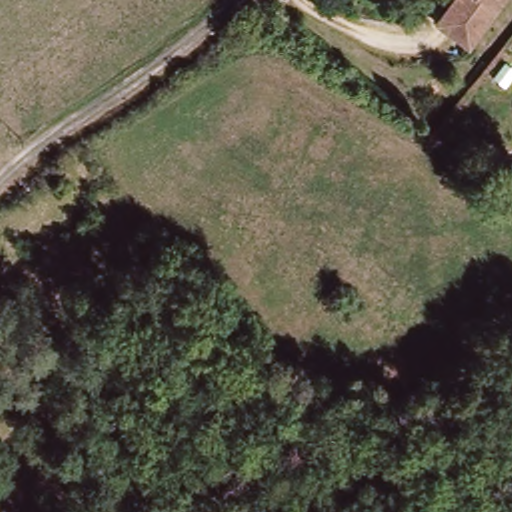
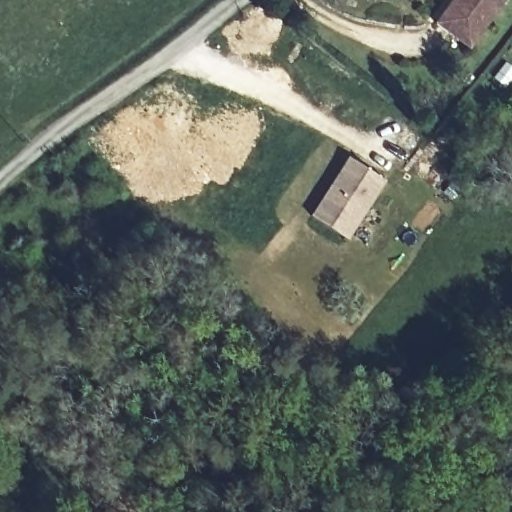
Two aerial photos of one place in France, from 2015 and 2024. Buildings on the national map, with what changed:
unchanged [(467,49),(435,24),(453,0),(505,0),(467,49)]
new [(350,159),(362,167),(385,181),(347,239),(313,218),(343,171),(350,159)]

